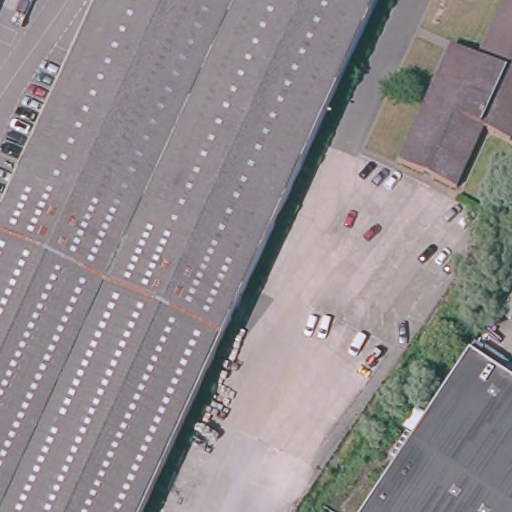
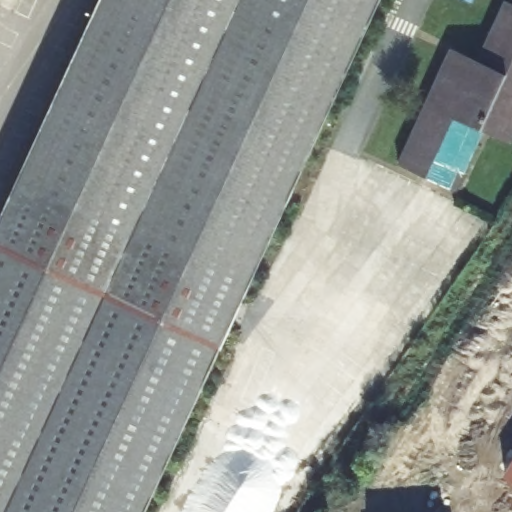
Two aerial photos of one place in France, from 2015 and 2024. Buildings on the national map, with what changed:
unchanged [(0,512),(0,218),(101,0),(377,0),(140,512),(0,512)]
unchanged [(477,130),(450,190),(397,165),(448,55),(475,67),(506,1),(512,4),(512,126),(505,142),(477,130)]
demolished [(512,383),(512,512),(363,512),(469,354),(512,383)]
new [(512,470),(512,478),(508,475),(512,470)]

